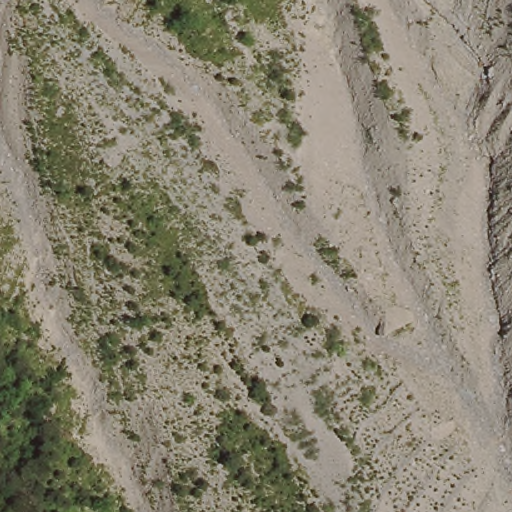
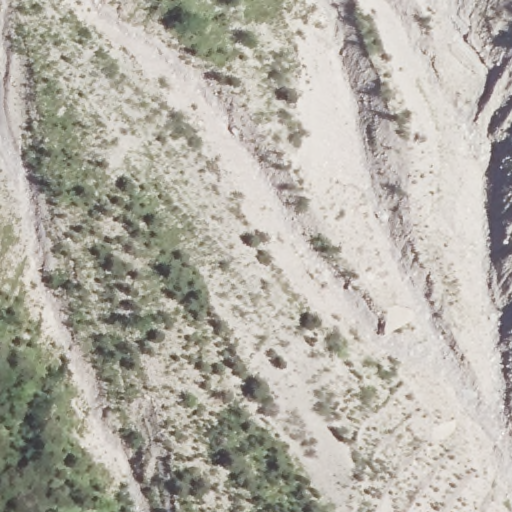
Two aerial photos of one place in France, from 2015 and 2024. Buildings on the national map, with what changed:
[]

